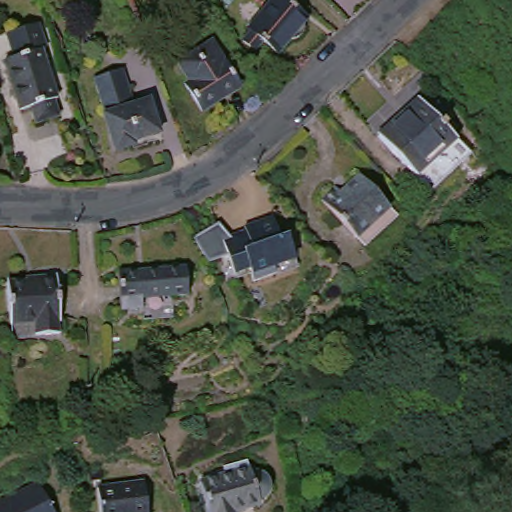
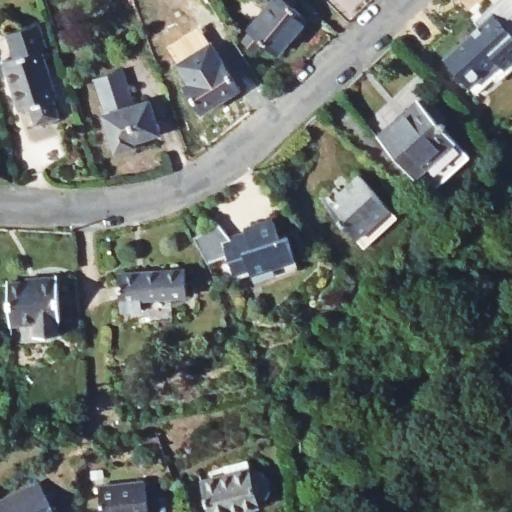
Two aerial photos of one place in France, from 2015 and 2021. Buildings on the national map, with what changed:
unchanged [(305,35),(300,40),(297,42),(291,42),(278,56),(263,42),(254,52),(243,41),(252,33),(247,29),(272,0),(282,0),(283,1),(285,0),(296,0),(298,2),(292,9),(308,23),(305,26),(305,35)]
new [(488,13),(502,0),(512,0),(512,65),(505,71),(498,64),(470,89),(445,61),(493,18),(488,13)]
unchanged [(66,114),(42,120),(37,103),(26,106),(11,57),(20,54),(12,30),(42,21),(50,45),(44,46),(66,114)]
unchanged [(235,93),(197,116),(179,88),(184,84),(171,64),(205,44),(235,93)]
new [(505,71),(512,65),(512,73),(498,86),(494,81),(476,97),(470,89),(498,64),(505,71)]
unchanged [(122,76),(135,112),(150,108),(160,140),(134,149),(135,154),(117,160),(104,123),(105,118),(94,86),(122,76)]
unchanged [(471,159),(431,194),(380,137),(420,102),(471,159)]
unchanged [(362,242),(327,206),(342,191),(347,196),(365,180),(395,212),(362,242)]
unchanged [(202,245),(227,230),(242,245),(257,240),(254,233),(282,223),(290,242),(297,240),(305,263),(283,271),(286,280),(264,288),(260,275),(244,281),(237,263),(217,270),(202,245)]
unchanged [(185,269),(187,296),(142,300),(142,310),(119,311),(117,273),(185,269)]
unchanged [(39,277),(57,276),(61,316),(59,316),(60,332),(38,334),(37,321),(11,323),(9,282),(39,279),(39,277)]
unchanged [(248,471),(249,473),(257,472),(265,477),(268,484),(269,491),(267,497),(258,503),(259,506),(237,512),(206,512),(198,484),(248,471)]
unchanged [(142,480),(145,512),(99,512),(97,484),(142,480)]
unchanged [(40,487),(51,512),(0,512),(0,504),(40,487)]

